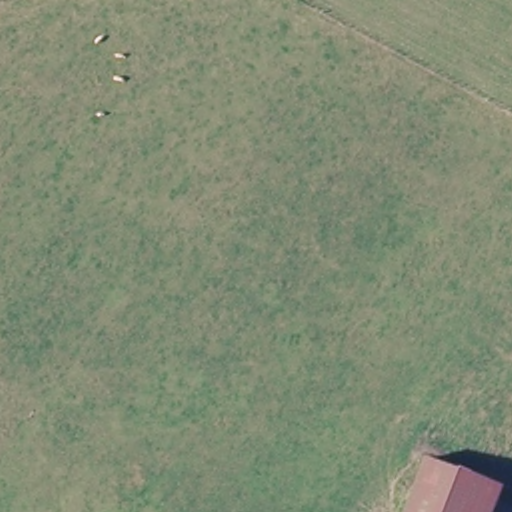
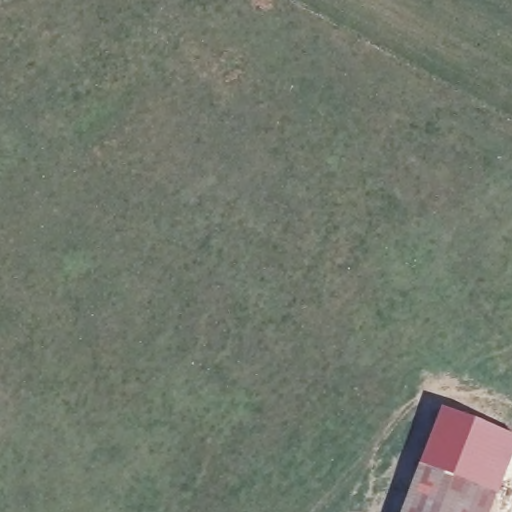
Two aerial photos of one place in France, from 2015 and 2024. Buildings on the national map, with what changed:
new [(423,467),(419,466),(442,410),(512,438),(512,457),(498,493),(487,489),(425,463),(423,467)]
unchanged [(484,488),(487,489),(478,512),(407,512),(425,463),(484,488)]

